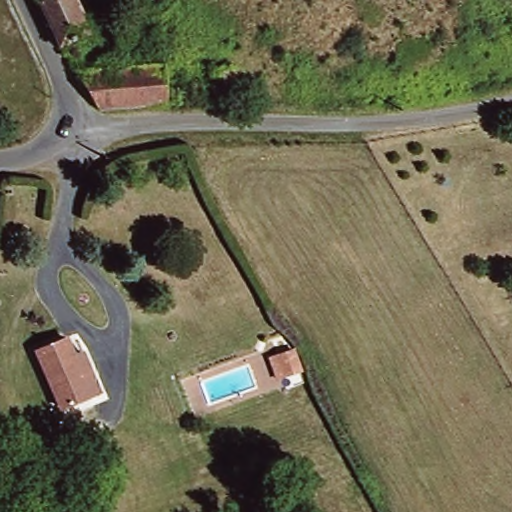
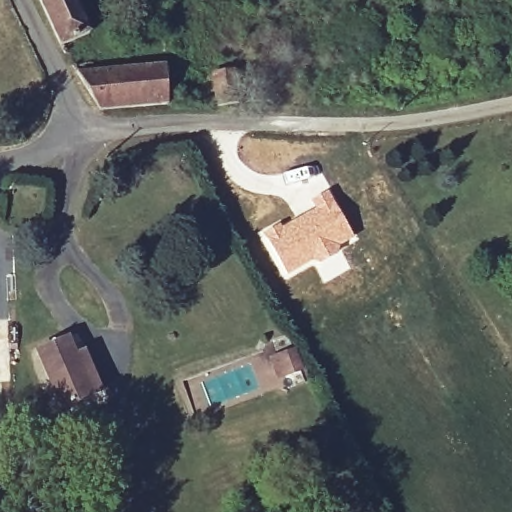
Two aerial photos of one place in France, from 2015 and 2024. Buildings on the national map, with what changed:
unchanged [(45,0),(82,0),(97,35),(66,50),(45,0)]
unchanged [(100,66),(170,64),(175,107),(101,112),(77,57),(96,55),(100,66)]
unchanged [(232,111),(212,110),(211,75),(233,76),(232,111)]
new [(315,206),(311,200),(330,189),(355,240),(340,249),(341,251),(316,267),(313,261),(287,276),(261,234),(315,206)]
unchanged [(52,378),(39,347),(68,336),(75,355),(87,350),(101,390),(75,403),(60,406),(52,378)]
unchanged [(276,381),(271,361),(295,355),(301,375),(276,381)]

